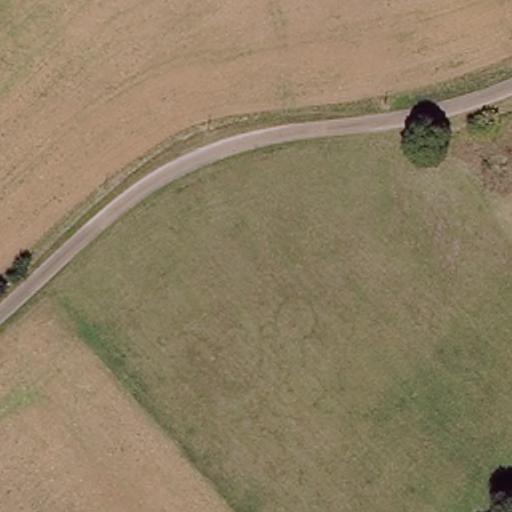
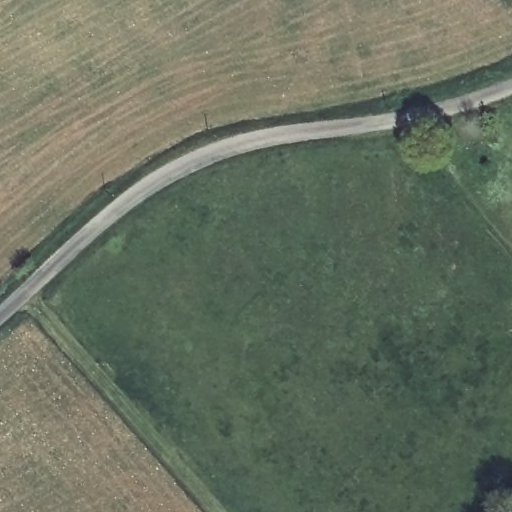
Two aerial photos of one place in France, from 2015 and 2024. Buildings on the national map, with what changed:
[]

